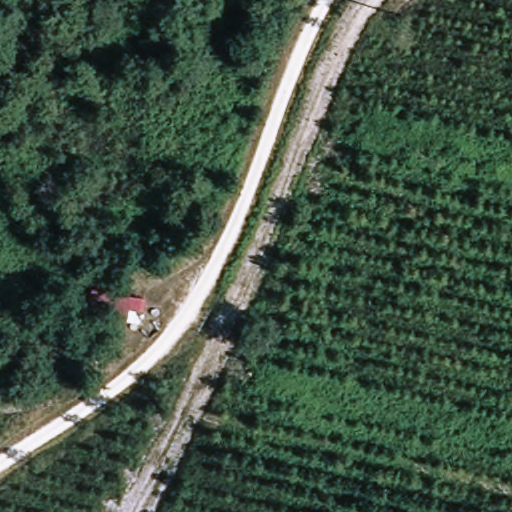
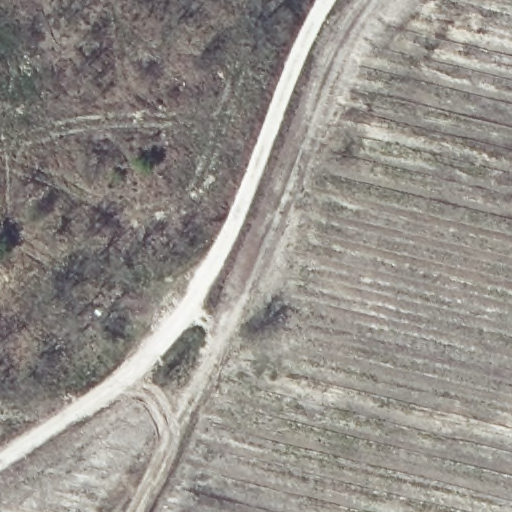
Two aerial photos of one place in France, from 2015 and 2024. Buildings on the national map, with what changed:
unchanged [(147,294),(147,311),(88,305),(91,285),(147,294)]

